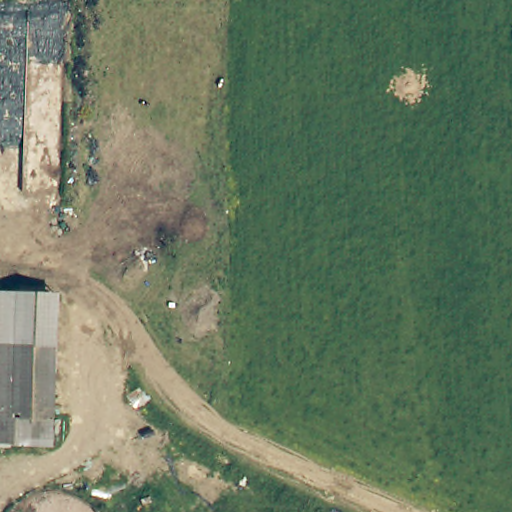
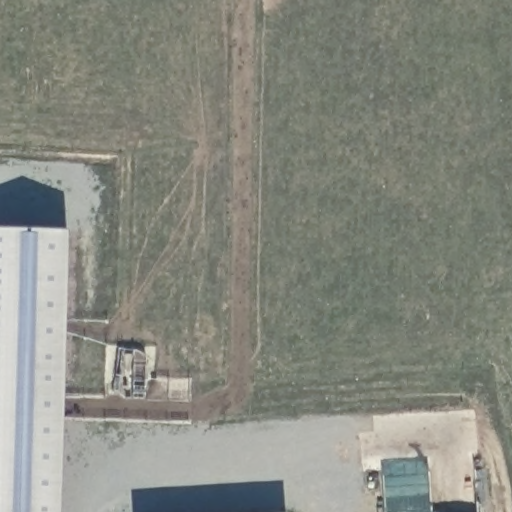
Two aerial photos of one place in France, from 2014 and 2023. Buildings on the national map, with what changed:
new [(67,230),(56,512),(0,512),(0,228),(67,230)]

